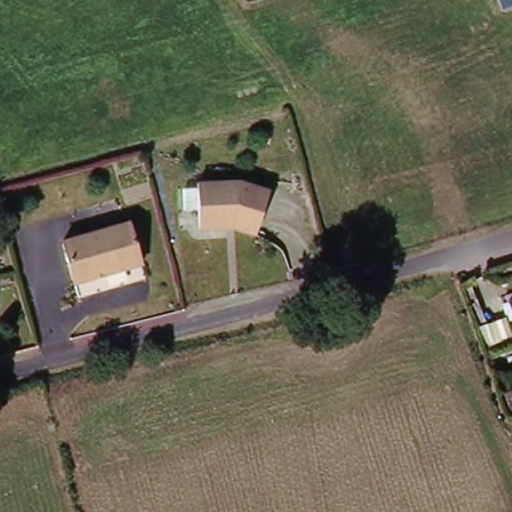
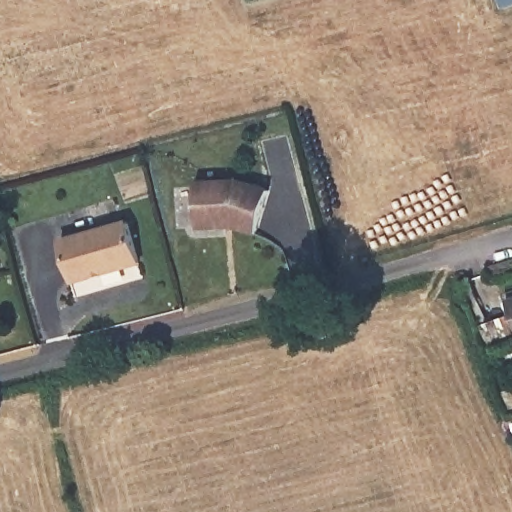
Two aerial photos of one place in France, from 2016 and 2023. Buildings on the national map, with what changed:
unchanged [(503,0),(512,0),(512,2),(504,5),(503,0)]
unchanged [(245,185),(275,194),(263,236),(240,230),(206,232),(203,188),(245,185)]
unchanged [(137,231),(150,272),(82,291),(70,250),(137,231)]
unchanged [(512,300),(512,302),(511,300),(512,300)]

